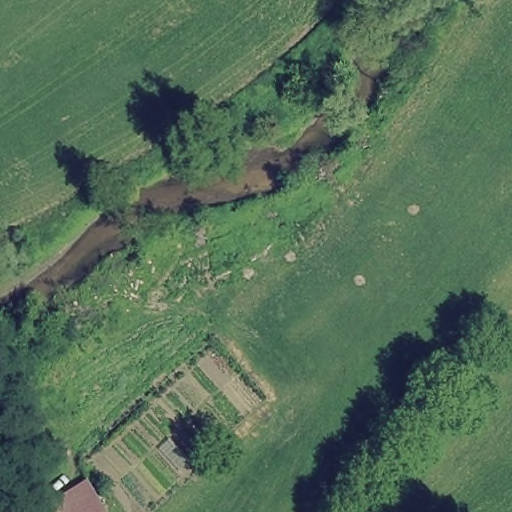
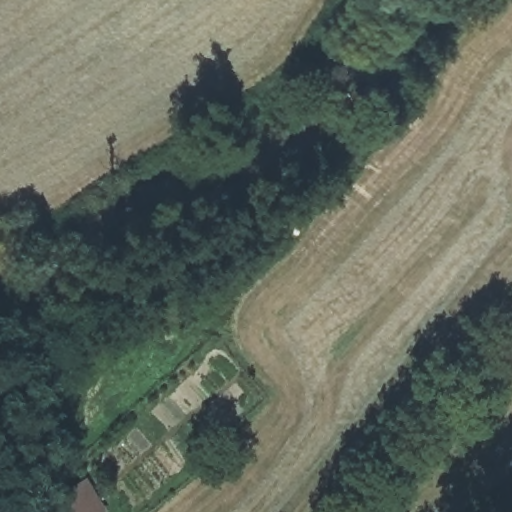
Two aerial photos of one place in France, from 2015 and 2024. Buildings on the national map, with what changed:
unchanged [(50,512),(44,502),(84,477),(105,512),(104,512),(50,512)]

